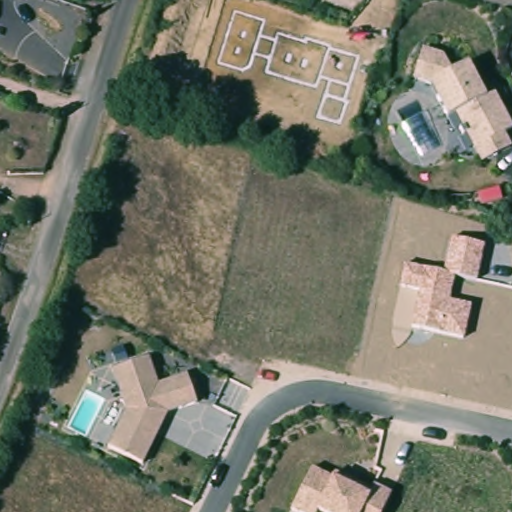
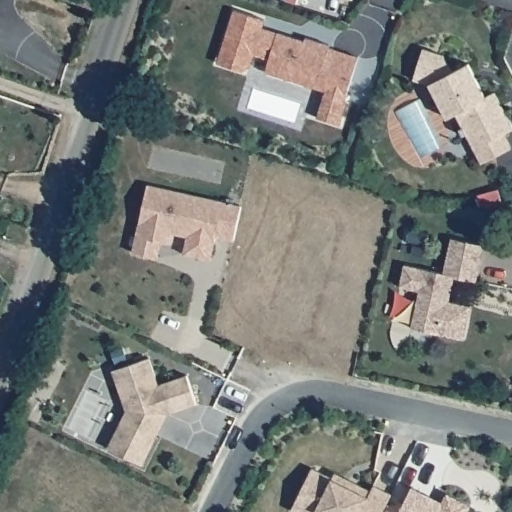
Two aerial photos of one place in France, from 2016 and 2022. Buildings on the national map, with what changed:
new [(329,80),(320,77),(316,87),(265,72),(270,59),(254,54),(250,66),(241,71),(217,62),(234,10),(265,20),(262,27),(277,32),(305,41),(305,37),(330,45),(328,47),(358,57),(345,100),(347,101),(340,124),(317,117),(324,95),(329,80)]
unchanged [(453,68),(468,60),(485,94),(494,89),(512,121),(512,124),(506,127),(512,137),(512,144),(482,159),(469,134),(466,134),(462,132),(461,126),(464,122),(457,112),(448,117),(428,81),(415,77),(423,46),(449,54),(453,68)]
new [(184,252),(157,257),(132,251),(147,184),(241,205),(234,239),(215,235),(214,241),(210,258),(184,252)]
unchanged [(420,291),(398,285),(403,264),(443,273),(451,237),(483,246),(476,282),(454,278),(448,302),(471,307),(463,340),(412,328),(420,291)]
unchanged [(107,447),(126,411),(113,370),(150,357),(157,383),(189,375),(197,405),(167,415),(142,466),(107,447)]
unchanged [(311,467),(332,477),(335,472),(371,490),(374,485),(392,495),(384,512),(316,512),(315,512),(295,512),(290,510),(311,467)]
new [(429,495),(441,501),(445,492),(470,504),(466,512),(397,512),(410,486),(429,495)]

